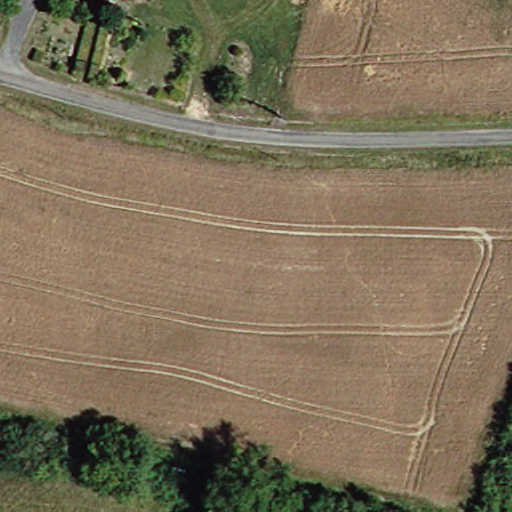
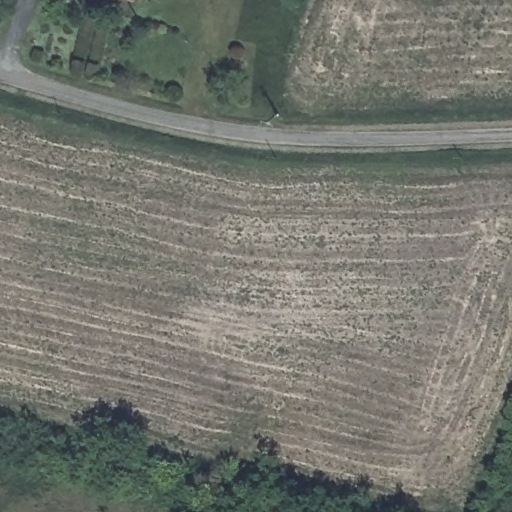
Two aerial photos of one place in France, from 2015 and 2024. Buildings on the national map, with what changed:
unchanged [(120,0),(126,0),(125,2),(120,0)]

